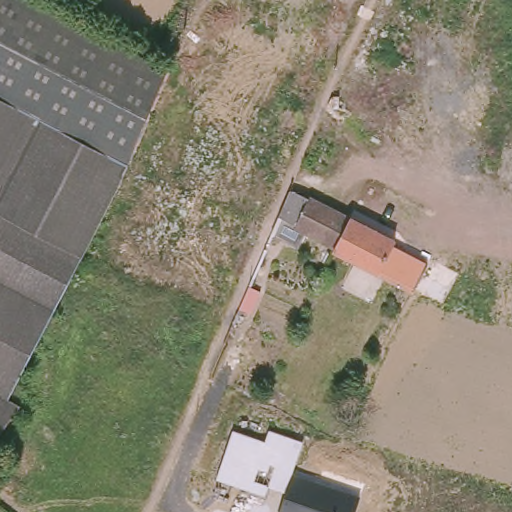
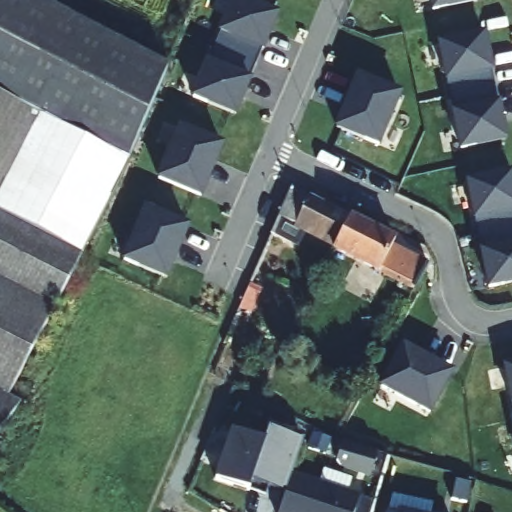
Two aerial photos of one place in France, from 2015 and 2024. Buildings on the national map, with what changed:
unchanged [(0,0),(34,0),(166,70),(111,200),(83,253),(0,210),(0,0)]
demolished [(343,32),(320,90),(185,33),(187,29),(305,81),(340,0),(367,0),(355,28),(343,32)]
new [(265,50),(253,78),(236,118),(189,97),(205,59),(217,31),(231,0),(248,0),(280,13),(265,50)]
new [(432,13),(430,0),(481,0),(481,3),(432,13)]
new [(510,140),(460,150),(437,40),(486,30),(510,140)]
new [(403,93),(380,148),(334,128),(356,73),(403,93)]
new [(225,143),(204,196),(156,178),(179,124),(225,143)]
new [(489,289),(466,178),(512,171),(512,285),(489,289)]
demolished [(291,225),(294,218),(298,208),(284,200),(293,182),(353,213),(389,232),(385,239),(416,254),(420,247),(431,253),(430,254),(448,263),(431,294),(413,286),(335,247),(291,225)]
new [(310,196),(310,194),(351,215),(396,238),(392,244),(427,264),(413,291),(377,274),(332,250),(335,245),(305,234),(299,247),(270,234),(291,188),(310,196)]
new [(192,225),(167,281),(121,261),(145,205),(192,225)]
unchanged [(0,393),(0,210),(83,253),(5,396),(0,393)]
new [(403,346),(451,373),(429,412),(381,386),(403,346)]
new [(512,366),(512,402),(505,367),(512,366)]
unchanged [(0,393),(5,396),(0,406),(0,393)]
unchanged [(0,434),(0,428),(3,430),(0,434)]
unchanged [(360,496),(355,512),(280,512),(285,493),(269,488),(266,497),(215,481),(232,430),(265,442),(268,430),(302,441),(292,474),(360,496)]
unchanged [(342,442),(378,453),(371,476),(341,466),(337,461),(342,442)]
new [(397,509),(409,512),(388,512),(388,510),(397,509)]

